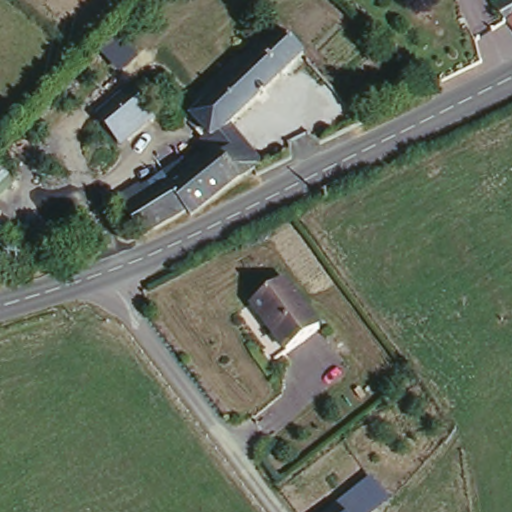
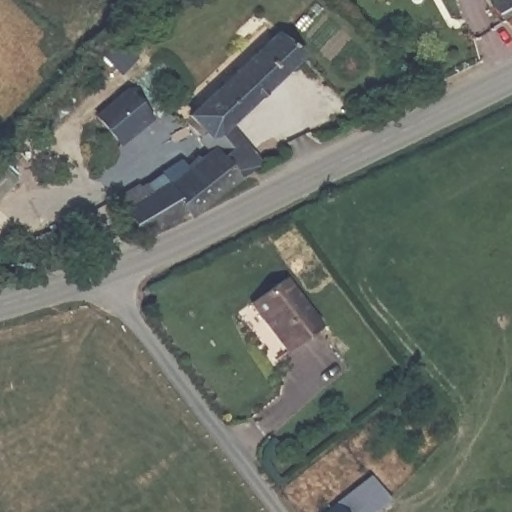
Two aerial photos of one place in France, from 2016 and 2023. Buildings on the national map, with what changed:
unchanged [(207,147),(188,128),(281,27),(298,49),(207,147)]
unchanged [(93,117),(129,87),(153,119),(118,147),(93,117)]
unchanged [(194,167),(222,148),(225,146),(235,142),(239,150),(261,138),(274,161),(252,173),(254,177),(252,178),(241,183),(237,185),(192,221),(187,213),(164,174),(191,159),(194,167)]
unchanged [(187,213),(143,237),(141,238),(126,210),(119,198),(159,176),(164,174),(187,213)]
unchanged [(282,285),(317,331),(288,354),(252,307),(282,285)]
unchanged [(380,512),(321,512),(374,473),(393,502),(380,512)]

